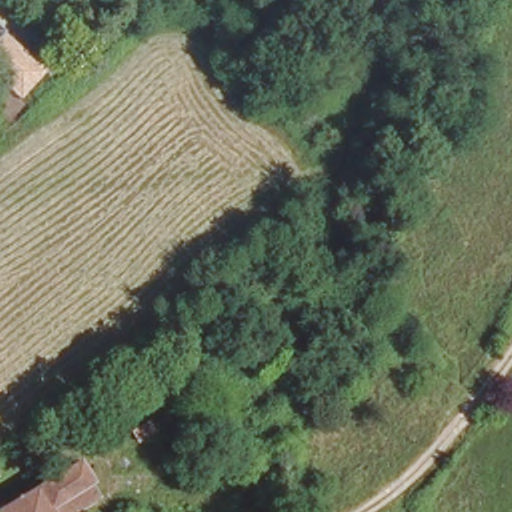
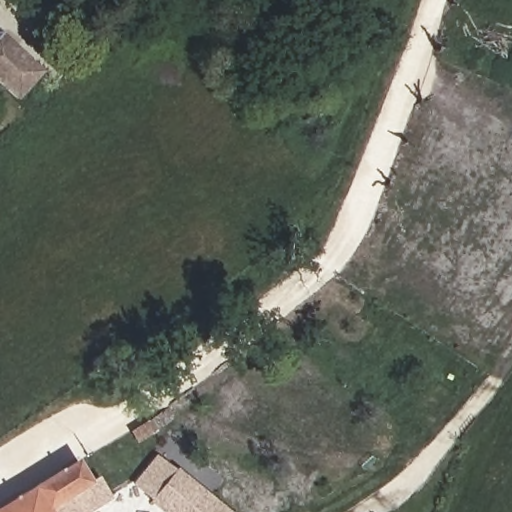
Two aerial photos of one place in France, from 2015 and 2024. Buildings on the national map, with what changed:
unchanged [(15,106),(0,92),(0,36),(46,75),(15,106)]
new [(157,453),(165,460),(163,462),(181,477),(184,475),(229,512),(160,512),(146,501),(130,487),(157,453)]
unchanged [(24,488),(69,456),(84,478),(94,495),(69,512),(0,512),(0,504),(24,488)]

